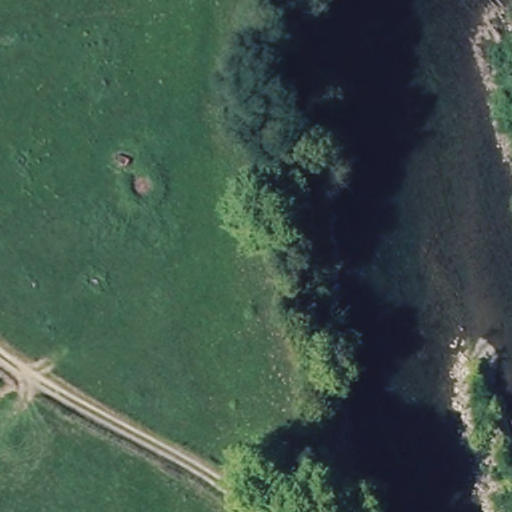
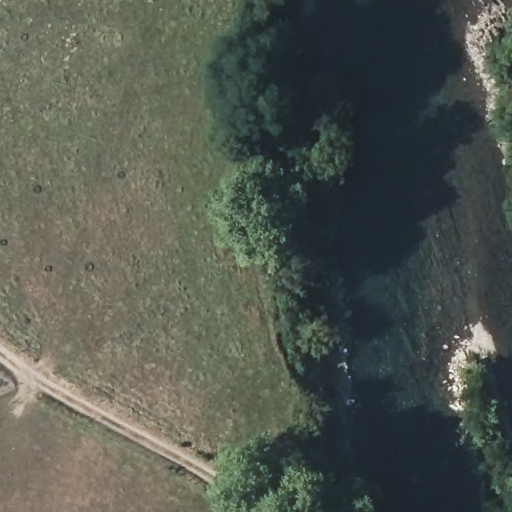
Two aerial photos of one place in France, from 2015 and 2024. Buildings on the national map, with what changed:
[]

